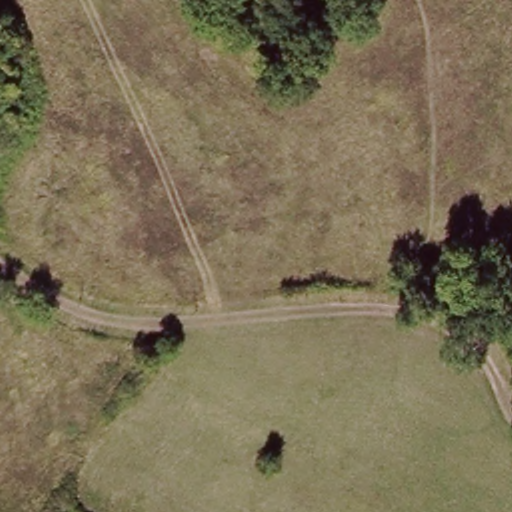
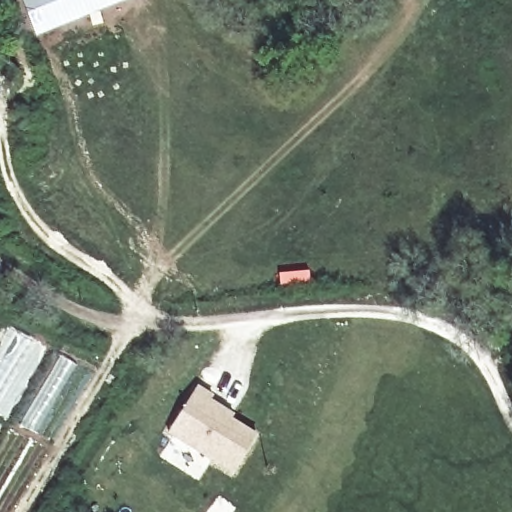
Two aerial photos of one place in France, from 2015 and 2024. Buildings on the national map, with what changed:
new [(36,35),(21,0),(123,0),(36,35)]
new [(210,398),(234,413),(231,417),(257,433),(232,473),(169,432),(198,384),(212,393),(210,398)]

